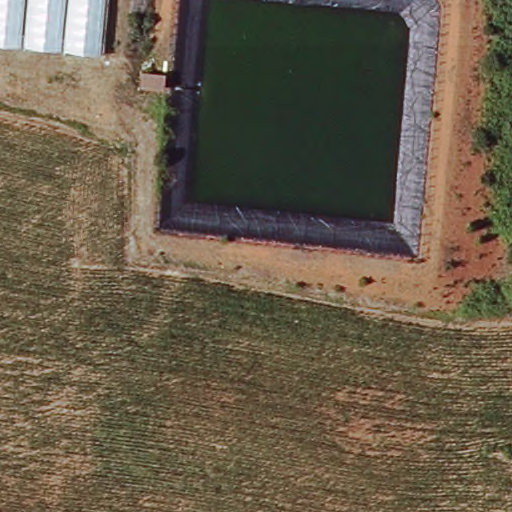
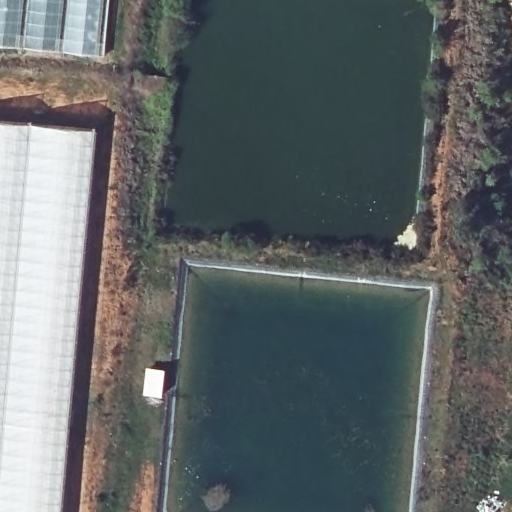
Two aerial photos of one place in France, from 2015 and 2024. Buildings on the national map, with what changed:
unchanged [(103,57),(0,46),(0,0),(109,0),(103,57)]
unchanged [(165,74),(165,92),(140,90),(142,72),(165,74)]
new [(65,512),(0,512),(0,118),(99,126),(65,512)]

